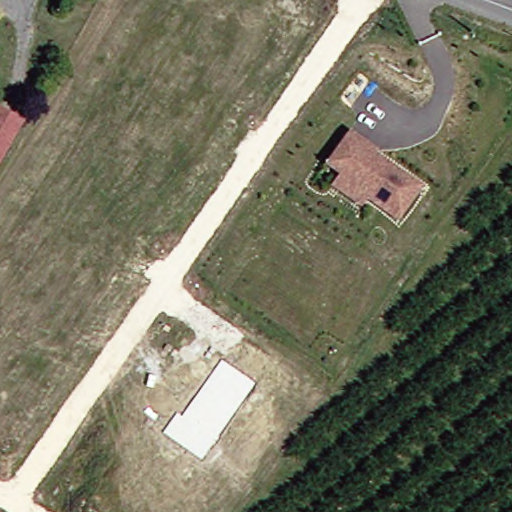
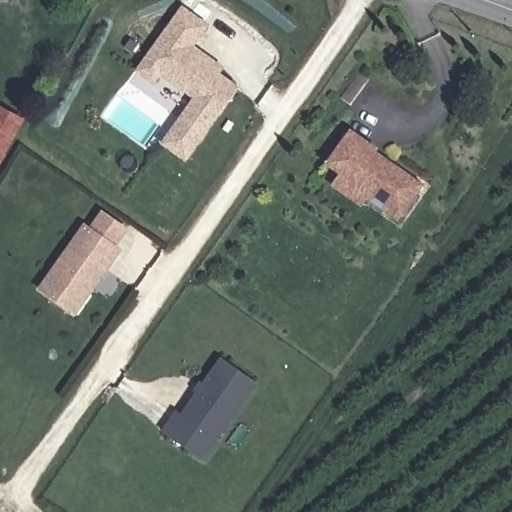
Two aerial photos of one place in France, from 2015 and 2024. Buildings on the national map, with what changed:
unchanged [(0,2),(0,0),(4,0),(3,3),(0,2)]
new [(181,7),(206,25),(192,46),(215,61),(211,67),(239,85),(190,160),(167,144),(197,97),(161,74),(155,83),(139,72),(181,7)]
unchanged [(22,119),(0,160),(0,106),(22,119)]
unchanged [(327,179),(336,169),(323,159),(343,131),(346,126),(371,146),(419,186),(394,217),(364,192),(356,202),(327,179)]
new [(89,227),(101,212),(128,230),(119,244),(125,248),(76,316),(36,289),(83,224),(89,227)]
unchanged [(256,381),(202,460),(163,432),(178,411),(183,416),(223,360),(256,381)]

